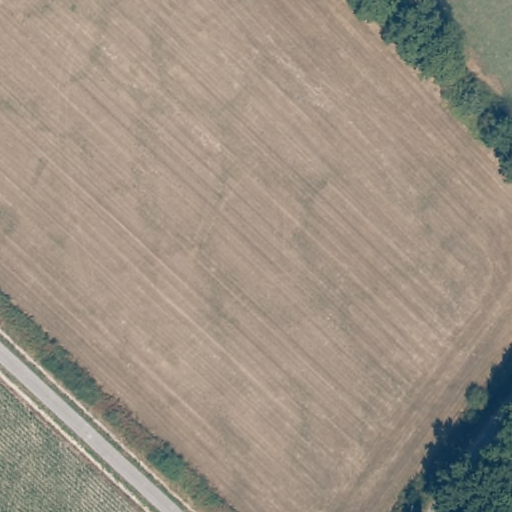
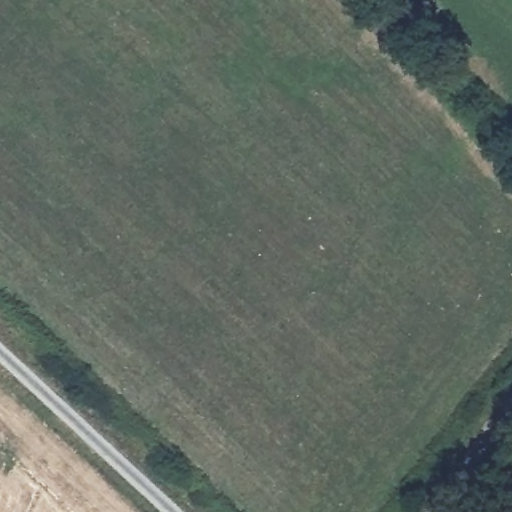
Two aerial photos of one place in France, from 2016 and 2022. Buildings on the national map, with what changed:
[]

